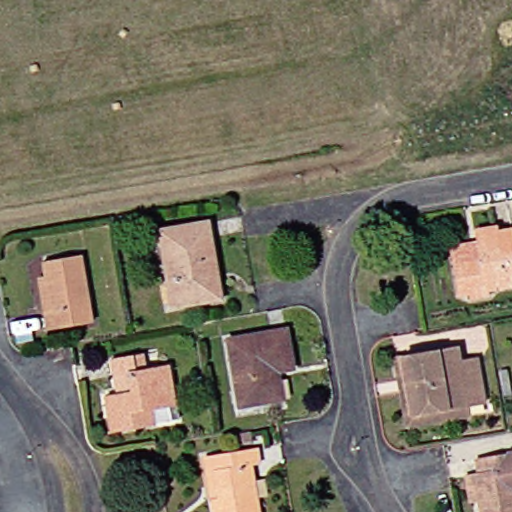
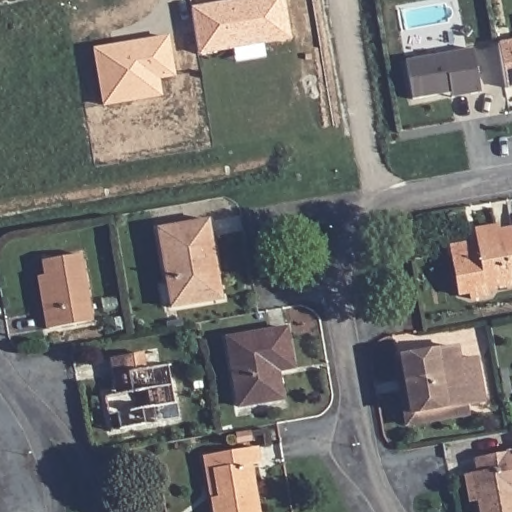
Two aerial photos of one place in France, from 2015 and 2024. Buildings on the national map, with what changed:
new [(292,40),(263,44),(266,58),(236,64),(234,49),(198,56),(190,6),(230,0),(284,0),(292,40)]
new [(177,76),(160,80),(162,98),(102,108),(92,48),(170,37),(177,76)]
new [(508,84),(502,45),(512,44),(512,89),(509,90),(508,84)]
unchanged [(481,94),(451,99),(450,93),(411,100),(406,61),(472,48),(481,94)]
unchanged [(224,299),(181,307),(166,228),(217,219),(226,271),(231,297),(224,299)]
unchanged [(496,289),(497,294),(480,297),(479,293),(468,295),(460,245),(487,240),(485,230),(506,226),(507,232),(512,232),(512,287),(496,289)]
unchanged [(55,275),(52,260),(90,253),(102,320),(58,328),(55,310),(49,276),(55,275)]
unchanged [(287,399),(248,406),(236,338),(295,327),(302,367),(289,369),(294,397),(287,399)]
unchanged [(406,358),(411,357),(466,347),(468,361),(486,358),(494,402),(475,405),(477,414),(417,425),(406,358)]
unchanged [(185,402),(187,402),(190,417),(122,429),(116,395),(128,393),(122,358),(152,353),(156,368),(178,363),(185,402)]
unchanged [(261,439),(248,441),(247,433),(260,431),(261,439)]
unchanged [(223,512),(213,456),(265,446),(267,461),(259,463),(267,512),(223,512)]
unchanged [(490,512),(488,499),(480,501),(475,475),(490,473),(487,458),(512,453),(512,512),(490,512)]

